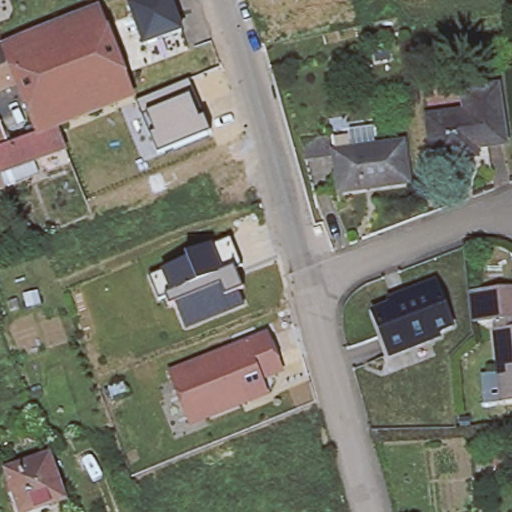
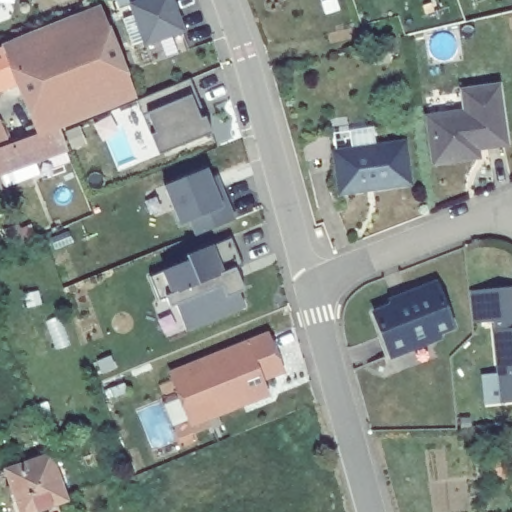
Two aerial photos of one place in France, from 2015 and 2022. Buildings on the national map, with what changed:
unchanged [(137,0),(172,0),(184,32),(144,46),(129,2),(137,0)]
unchanged [(17,80),(2,46),(97,9),(131,94),(54,122),(35,130),(29,115),(15,81),(17,80)]
unchanged [(17,80),(15,81),(0,87),(0,47),(2,46),(17,80)]
unchanged [(151,133),(149,133),(137,100),(189,80),(202,117),(204,116),(210,132),(159,152),(151,133)]
unchanged [(502,140),(474,144),(475,153),(434,159),(427,116),(465,110),(462,89),(495,84),(502,140)]
unchanged [(6,142),(35,130),(54,122),(62,145),(0,169),(0,134),(2,133),(6,142)]
unchanged [(407,186),(338,196),(332,155),(402,145),(407,186)]
new [(192,223),(182,227),(167,187),(210,171),(214,181),(220,178),(237,222),(198,238),(192,223)]
unchanged [(237,281),(247,307),(188,331),(178,306),(172,309),(169,299),(162,302),(152,278),(192,262),(190,257),(235,239),(246,268),(234,273),(237,281)]
unchanged [(446,329),(432,334),(434,339),(384,359),(367,315),(385,308),(383,303),(429,286),(446,329)]
unchanged [(475,295),(512,288),(512,404),(494,405),(489,324),(478,324),(475,295)]
unchanged [(255,397),(194,422),(172,370),(270,331),(285,369),(264,377),(270,391),(255,397)]
unchanged [(67,501),(34,512),(20,512),(7,471),(52,457),(67,501)]

